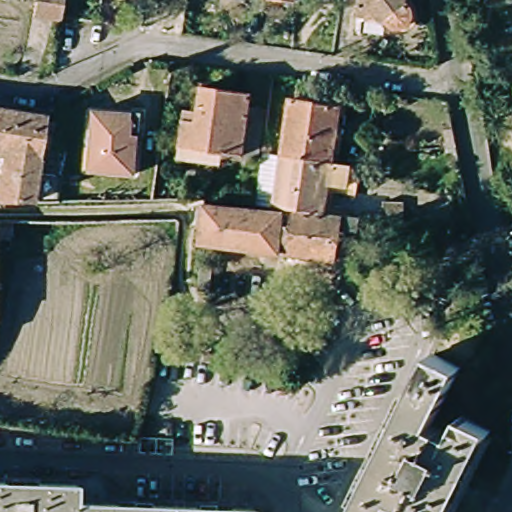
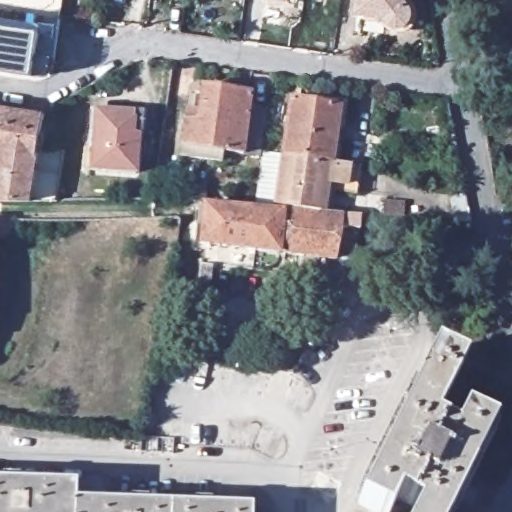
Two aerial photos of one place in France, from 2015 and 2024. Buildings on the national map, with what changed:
unchanged [(36,0),(65,0),(63,18),(36,17),(36,0)]
unchanged [(416,12),(415,19),(414,20),(413,21),(412,22),(411,22),(410,24),(409,24),(406,25),(405,25),(404,25),(403,25),(401,25),(400,25),(399,24),(398,24),(396,23),(395,22),(394,22),(393,21),(392,20),(391,16),(358,12),(359,0),(417,0),(416,7),(416,12)]
new [(41,32),(35,76),(0,71),(0,26),(41,32)]
unchanged [(172,152),(173,142),(176,106),(187,107),(192,82),(239,89),(237,100),(256,102),(249,154),(231,151),(209,148),(208,157),(172,152)]
unchanged [(295,99),(344,106),(337,162),(287,155),(295,99)]
unchanged [(60,201),(36,201),(0,201),(0,164),(1,155),(0,154),(0,108),(45,115),(44,122),(54,122),(51,150),(66,152),(60,201)]
unchanged [(88,169),(93,130),(97,131),(100,110),(141,114),(134,174),(88,169)]
unchanged [(364,194),(334,189),(329,212),(295,209),(280,207),(287,155),(337,162),(368,166),(364,194)]
unchanged [(194,189),(210,189),(210,201),(198,201),(194,201),(194,189)]
unchanged [(205,242),(209,203),(288,213),(287,224),(283,252),(205,242)]
unchanged [(363,246),(342,244),(339,259),(288,253),(292,225),(295,209),(329,212),(367,217),(363,246)]
unchanged [(20,220),(19,239),(1,239),(0,254),(0,220),(20,220)]
unchanged [(206,267),(217,268),(213,295),(204,293),(204,292),(203,287),(206,267)]
unchanged [(179,324),(174,357),(163,355),(168,322),(179,324)]
unchanged [(462,368),(434,422),(455,433),(465,414),(493,428),(450,512),(415,512),(417,510),(395,499),(388,512),(376,512),(360,505),(435,355),(462,368)]
unchanged [(78,483),(78,502),(257,510),(256,512),(0,512),(0,480),(78,483)]

